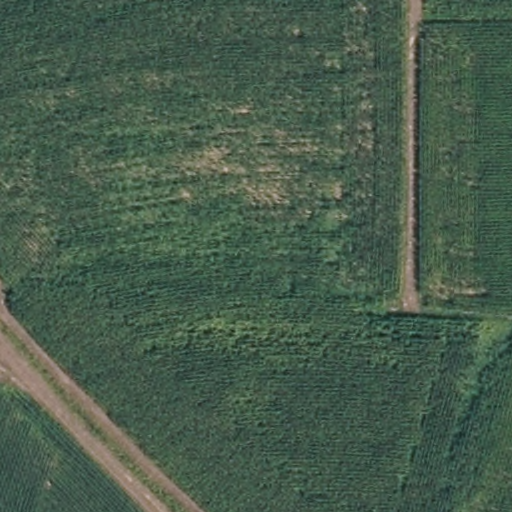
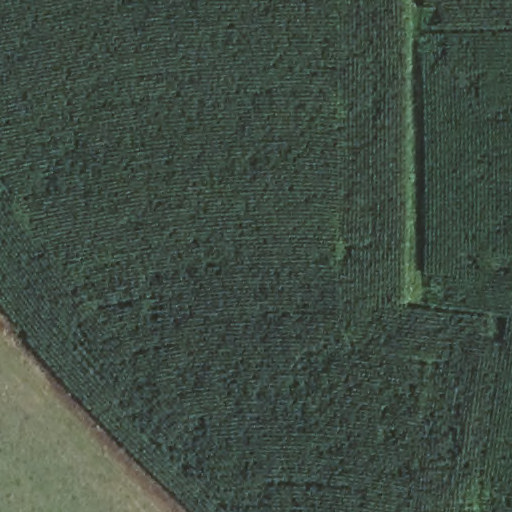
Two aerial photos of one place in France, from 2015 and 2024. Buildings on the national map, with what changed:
[]

